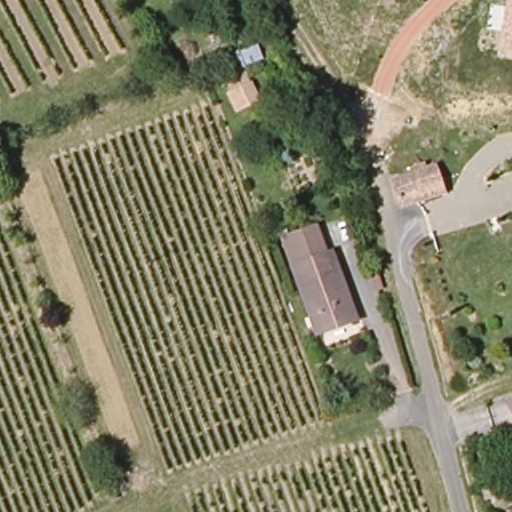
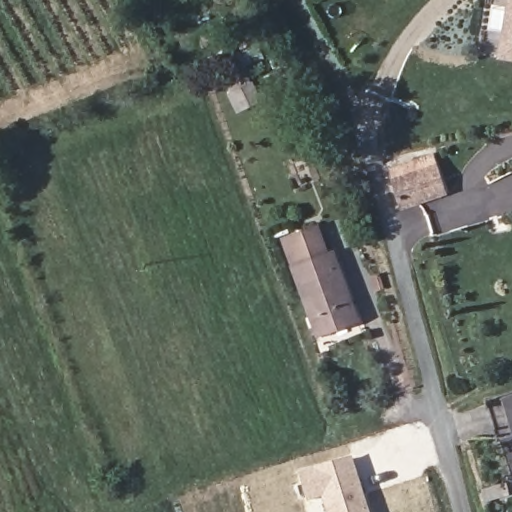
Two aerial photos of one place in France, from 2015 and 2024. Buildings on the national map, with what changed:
unchanged [(497,57),(507,0),(512,0),(512,60),(497,57)]
unchanged [(388,180),(417,172),(440,164),(447,193),(430,206),(401,214),(388,180)]
unchanged [(325,256),(330,255),(357,324),(318,339),(281,242),(315,229),(325,256)]
new [(307,503),(298,473),(352,456),(371,512),(326,512),(322,497),(307,503)]

